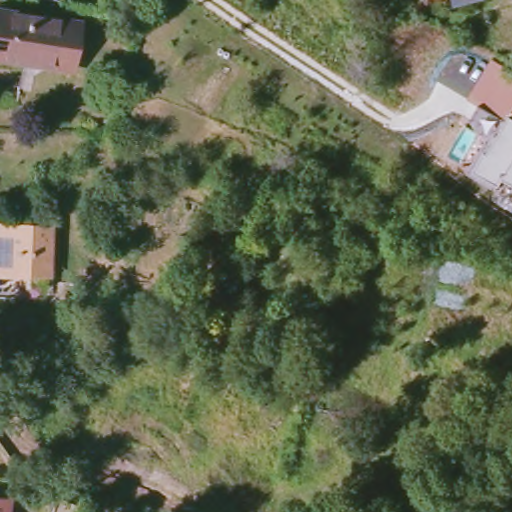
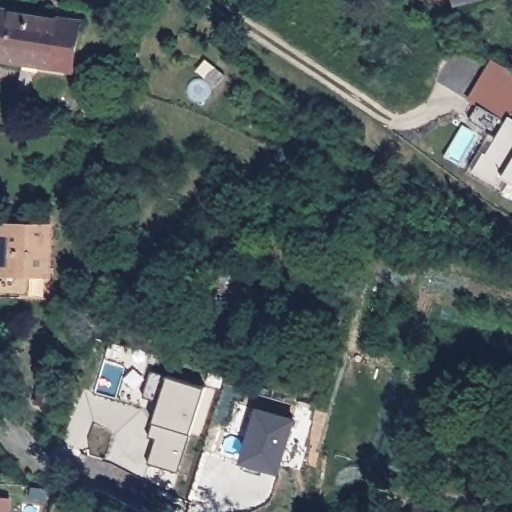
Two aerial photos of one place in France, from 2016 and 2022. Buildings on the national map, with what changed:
unchanged [(457,0),(478,0),(458,5),(457,0)]
unchanged [(0,58),(0,9),(79,22),(74,62),(72,70),(25,62),(0,58)]
unchanged [(512,69),(512,112),(509,117),(512,119),(512,181),(504,176),(499,185),(473,170),(467,170),(490,135),(470,122),(480,106),(469,99),(492,59),(512,69)]
unchanged [(50,263),(55,263),(55,288),(0,286),(0,214),(52,216),(50,263)]
new [(168,376),(205,387),(192,434),(178,474),(148,463),(156,439),(148,436),(154,422),(160,400),(145,396),(152,371),(168,376)]
unchanged [(60,400),(55,415),(40,410),(45,396),(60,400)]
new [(257,407),(295,419),(279,475),(240,463),(257,407)]
unchanged [(12,512),(0,512),(0,498),(13,500),(12,512)]

